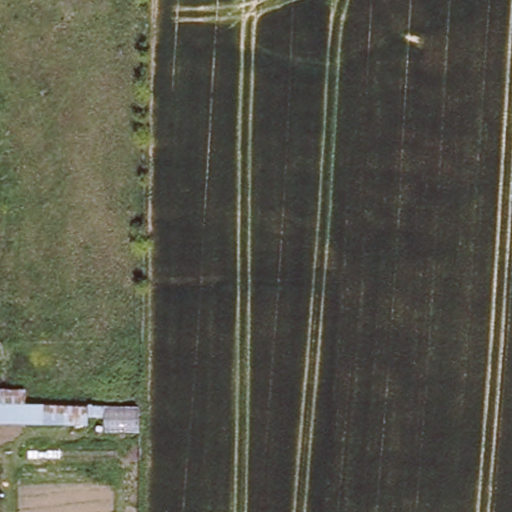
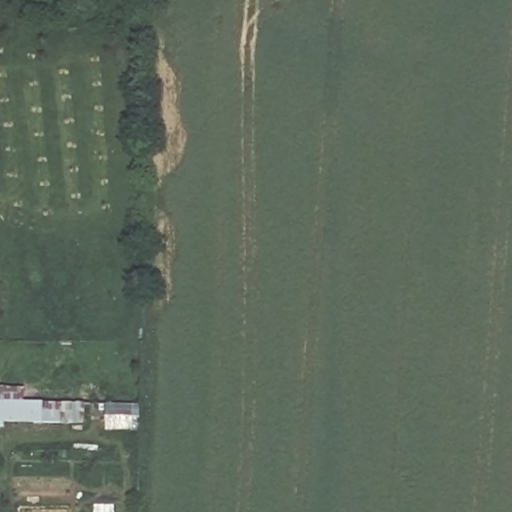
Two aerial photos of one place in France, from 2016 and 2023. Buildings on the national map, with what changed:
unchanged [(4,401),(38,405),(41,425),(0,424),(0,388),(1,388),(4,401)]

